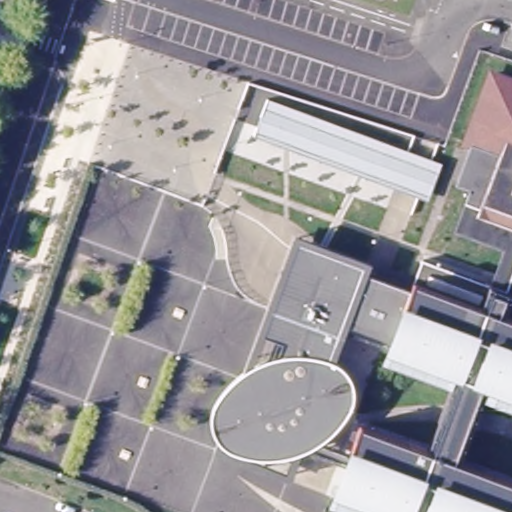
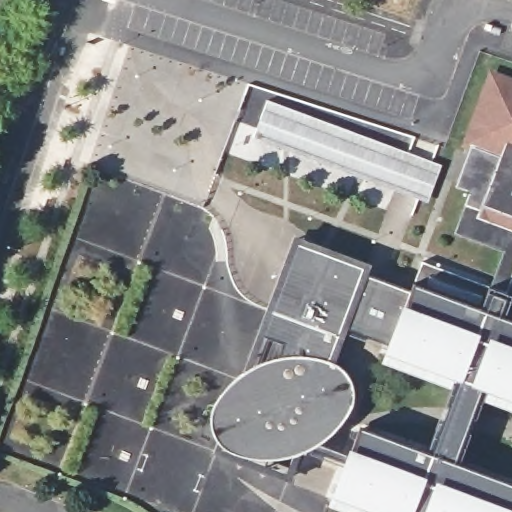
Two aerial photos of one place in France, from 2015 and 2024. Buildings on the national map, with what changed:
unchanged [(488,389),(457,377),(388,351),(389,348),(346,332),(335,361),(340,366),(345,372),(349,380),(352,391),(352,402),(346,414),(338,426),(327,437),(321,442),(310,448),(300,453),(290,481),(212,451),(217,440),(214,434),(211,428),(210,420),(211,414),(213,407),(216,399),(222,389),(227,383),(235,375),(244,370),(295,234),(372,263),(369,273),(412,289),(422,261),(495,288),(509,251),(460,233),(476,192),(462,187),(475,151),(465,148),(491,78),(512,87),(512,398),(488,389)]
unchanged [(424,200),(250,134),(265,97),(438,163),(424,200)]
unchanged [(460,464),(428,452),(457,377),(488,389),(460,464)]
unchanged [(381,512),(334,494),(360,426),(428,452),(460,464),(512,484),(512,512),(381,512)]

